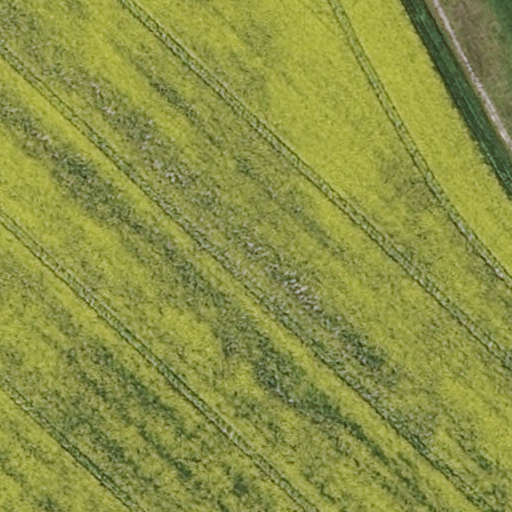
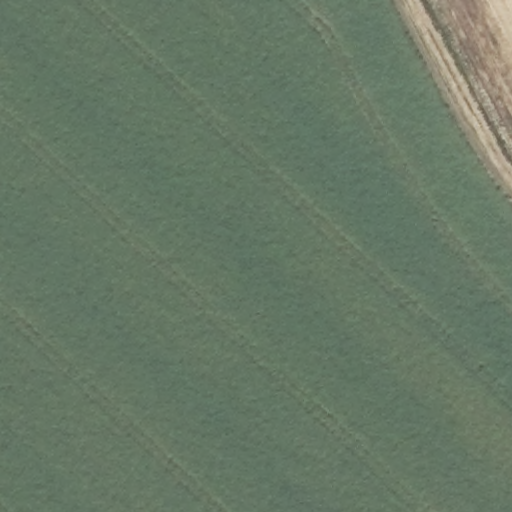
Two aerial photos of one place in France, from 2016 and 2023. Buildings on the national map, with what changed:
[]

